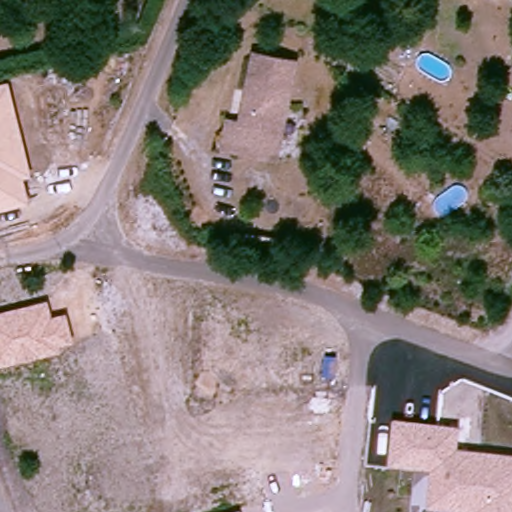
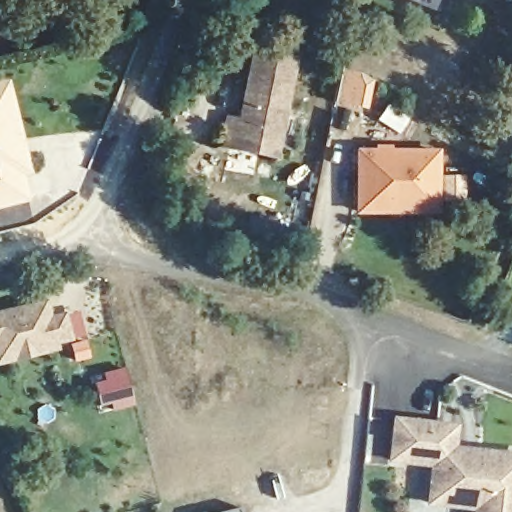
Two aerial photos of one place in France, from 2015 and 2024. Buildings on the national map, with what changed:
unchanged [(215,138),(221,110),(235,112),(249,45),(291,54),(272,139),(270,150),(215,138)]
unchanged [(15,140),(4,143),(11,175),(23,172),(29,199),(0,206),(0,84),(1,84),(15,140)]
new [(356,150),(440,150),(440,216),(355,216),(356,150)]
unchanged [(64,313),(71,342),(60,345),(61,353),(0,370),(0,312),(48,301),(53,315),(64,313)]
unchanged [(459,424),(457,446),(512,452),(512,512),(469,512),(470,511),(429,507),(431,467),(390,463),(391,417),(459,424)]
unchanged [(241,512),(228,512),(240,508),(241,512)]

